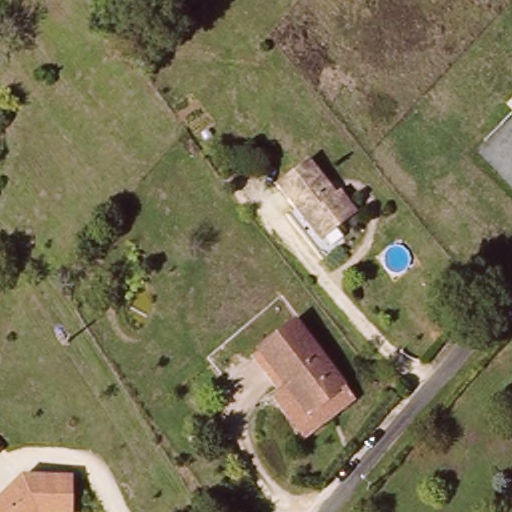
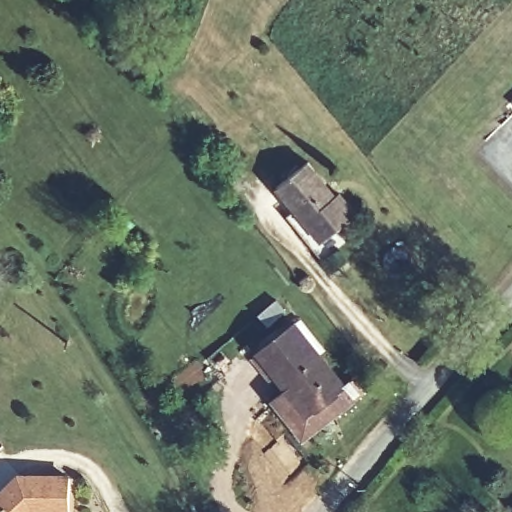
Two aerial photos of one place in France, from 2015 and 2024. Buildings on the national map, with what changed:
unchanged [(340,192),(356,213),(322,242),(276,184),(308,159),(329,186),(324,190),(331,198),(336,195),(340,192)]
unchanged [(281,379),(275,384),(253,354),(259,349),(258,347),(294,321),(343,387),(311,411),(287,379),(283,382),(281,379)]
unchanged [(300,436),(272,397),(287,387),(283,382),(287,379),(311,411),(343,387),(352,398),(300,436)]
unchanged [(21,477),(70,479),(70,512),(0,512),(0,499),(21,477)]

